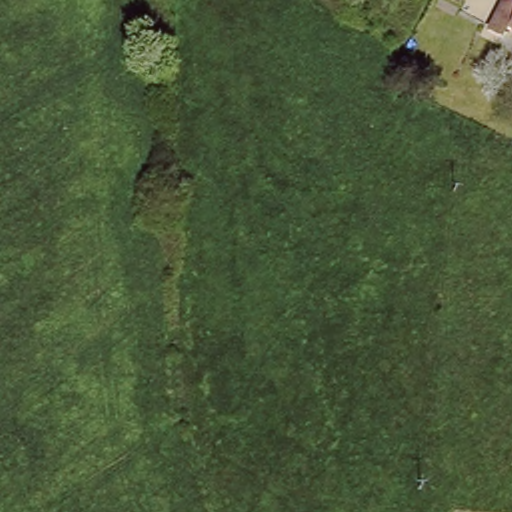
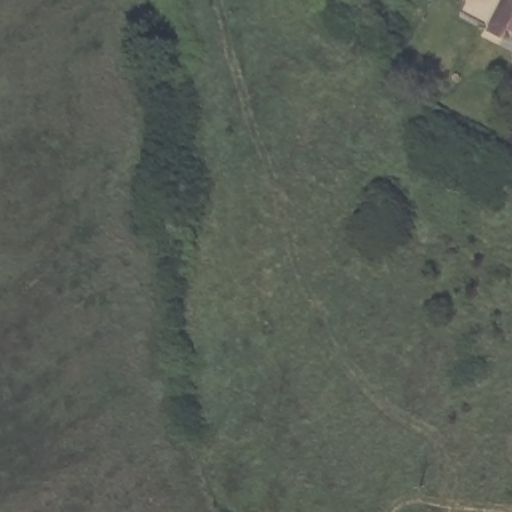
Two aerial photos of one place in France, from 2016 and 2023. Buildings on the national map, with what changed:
unchanged [(501,37),(488,30),(503,0),(506,0),(512,3),(512,28),(507,25),(501,37)]

